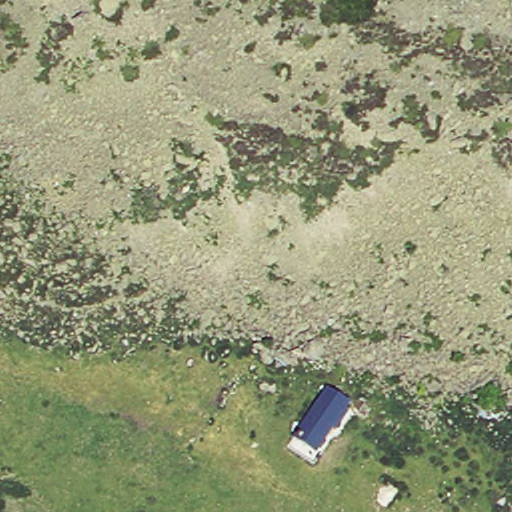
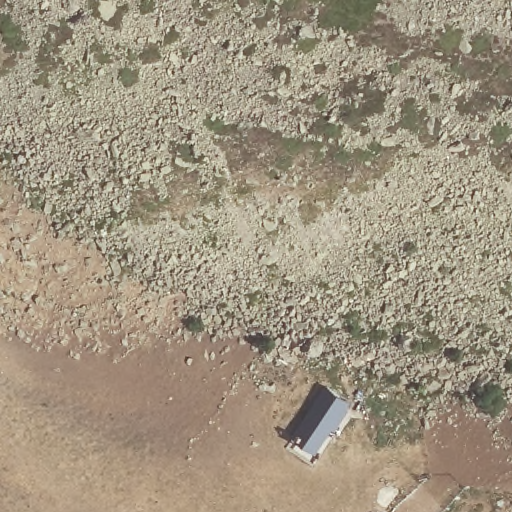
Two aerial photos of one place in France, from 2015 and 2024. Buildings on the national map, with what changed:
unchanged [(297,435),(329,388),(352,402),(315,451),(297,435)]

